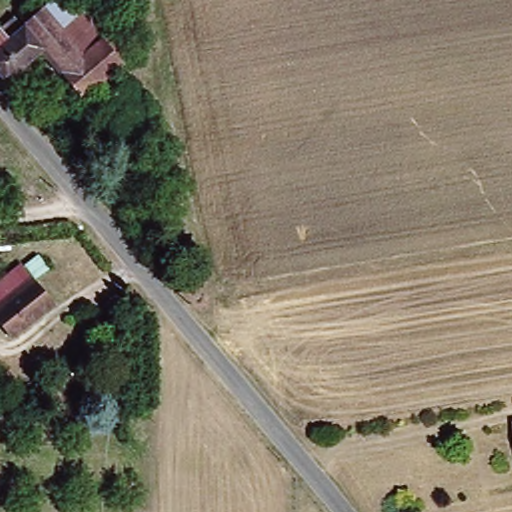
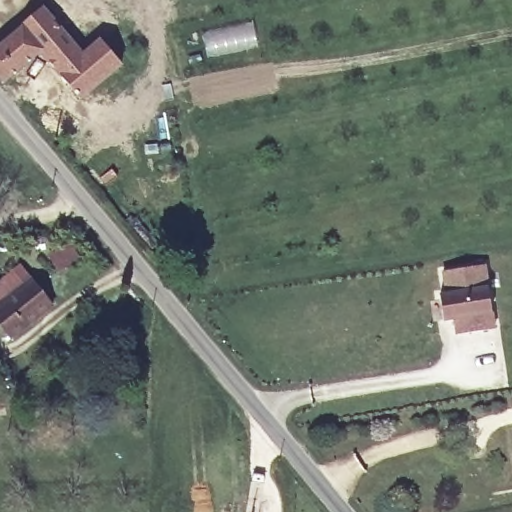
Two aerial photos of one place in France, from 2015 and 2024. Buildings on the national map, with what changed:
unchanged [(60,104),(33,128),(27,121),(65,90),(36,56),(0,87),(0,31),(8,24),(17,33),(55,0),(59,0),(115,66),(117,68),(66,110),(60,104)]
unchanged [(59,0),(60,0),(77,0),(125,58),(115,66),(59,0)]
unchanged [(15,338),(0,320),(0,285),(26,265),(37,279),(57,304),(15,338)]
new [(487,265),(497,329),(454,335),(452,322),(442,324),(437,295),(446,294),(443,272),(487,265)]

